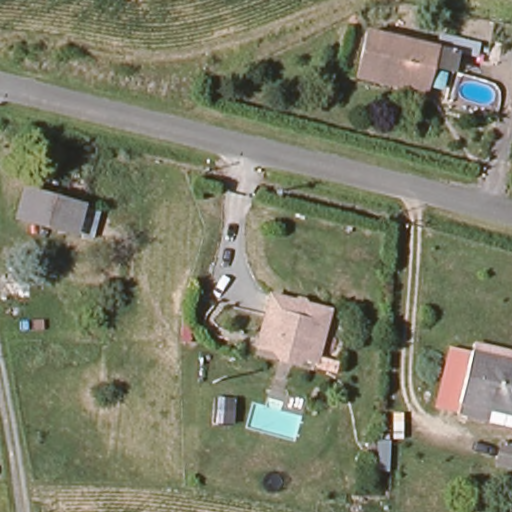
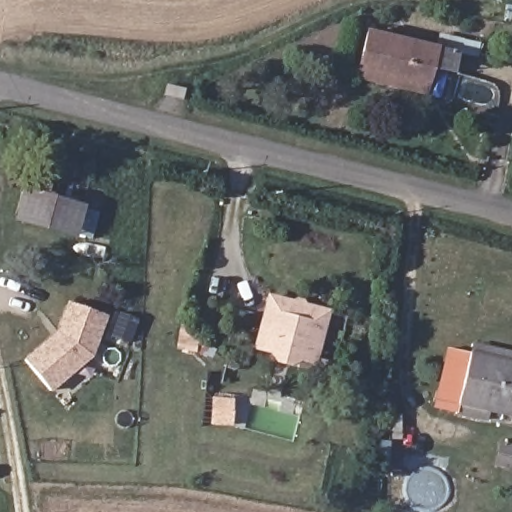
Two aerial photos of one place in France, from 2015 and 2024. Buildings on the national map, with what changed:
unchanged [(390,91),(392,85),(357,75),(367,32),(436,51),(425,86),(422,99),(390,91)]
unchanged [(80,208),(75,235),(17,217),(24,192),(80,208)]
new [(93,358),(52,393),(24,360),(56,332),(67,302),(108,317),(93,358)]
unchanged [(318,358),(297,362),(295,364),(280,359),(275,352),(265,349),(260,340),(271,303),(291,310),(298,306),(301,306),(305,312),(327,320),(318,358)]
unchanged [(443,418),(456,358),(458,351),(512,363),(512,425),(498,421),(496,432),(464,423),(443,418)]
unchanged [(512,453),(512,474),(487,467),(492,448),(512,453)]

